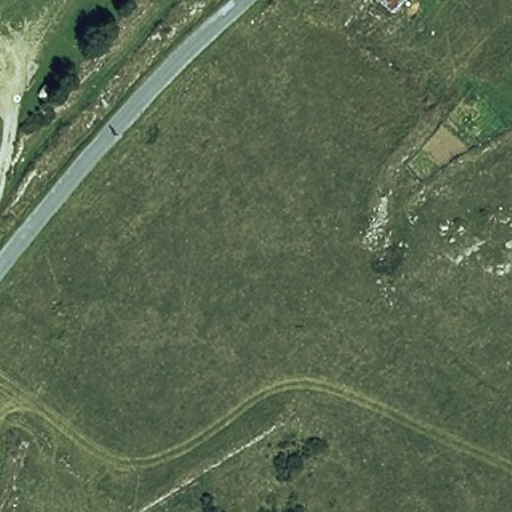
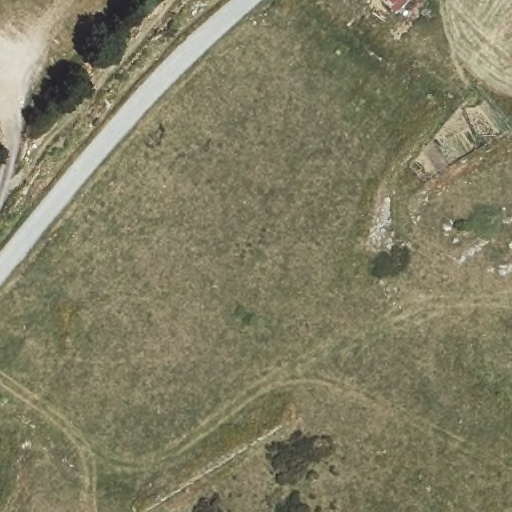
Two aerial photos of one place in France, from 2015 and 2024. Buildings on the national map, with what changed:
unchanged [(412,0),(397,18),(373,0),(412,0)]

